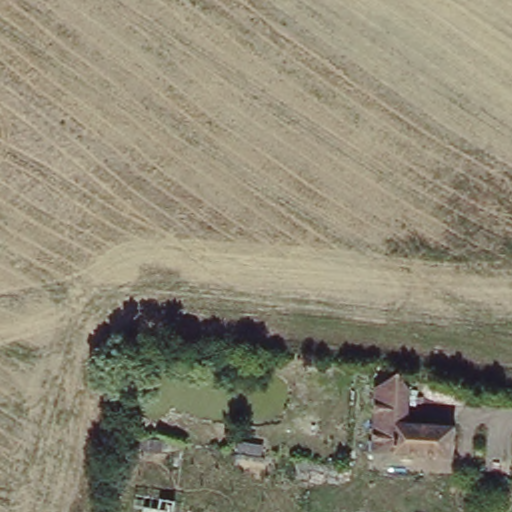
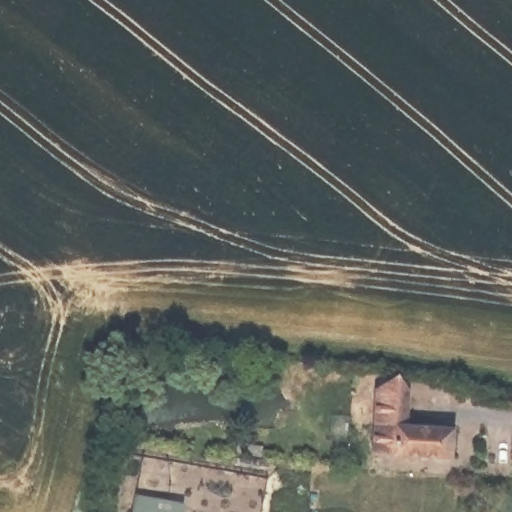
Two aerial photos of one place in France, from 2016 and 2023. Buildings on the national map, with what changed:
unchanged [(377,390),(396,377),(407,389),(406,413),(406,425),(451,426),(451,459),(376,458),(377,413),(377,390)]
new [(186,504),(184,512),(132,512),(135,495),(186,504)]

